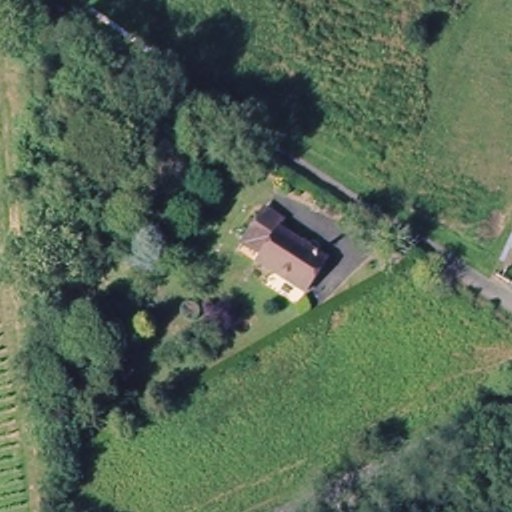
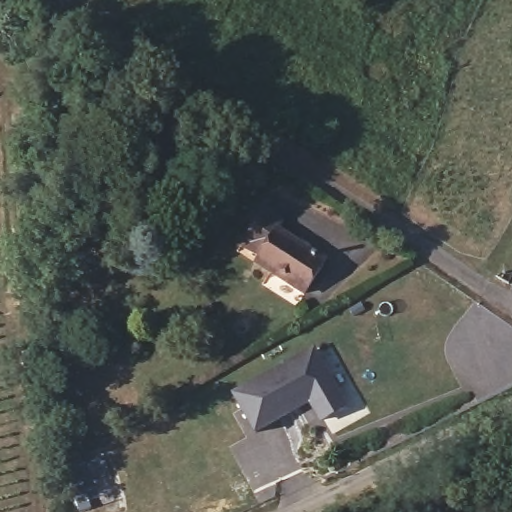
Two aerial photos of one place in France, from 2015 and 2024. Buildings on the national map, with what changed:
unchanged [(322,266),(301,294),(254,263),(259,257),(242,244),(266,214),(282,225),(275,233),(322,266)]
new [(319,424),(309,406),(254,435),(231,395),(315,348),(348,406),(319,424)]

